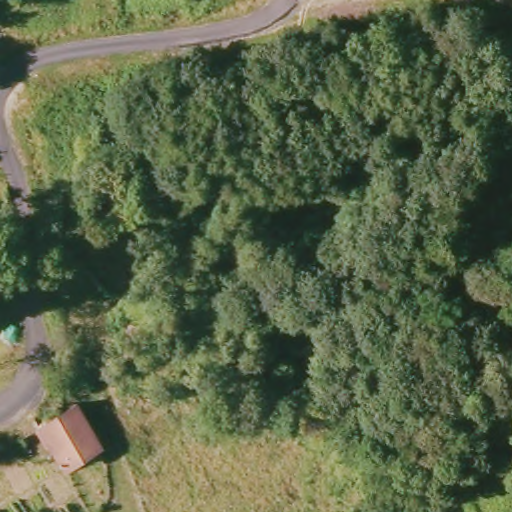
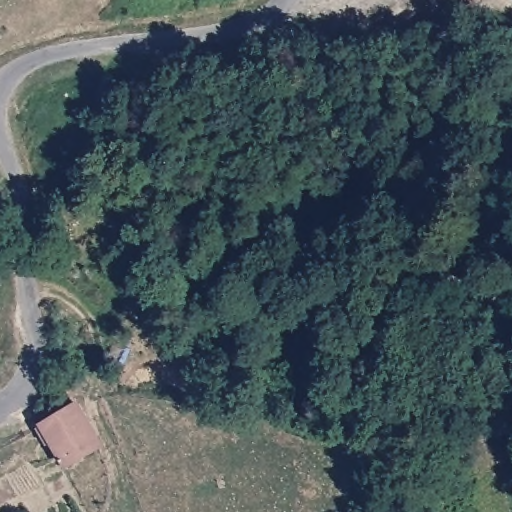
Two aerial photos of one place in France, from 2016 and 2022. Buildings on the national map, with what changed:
unchanged [(75,402),(96,445),(60,468),(38,427),(75,402)]

